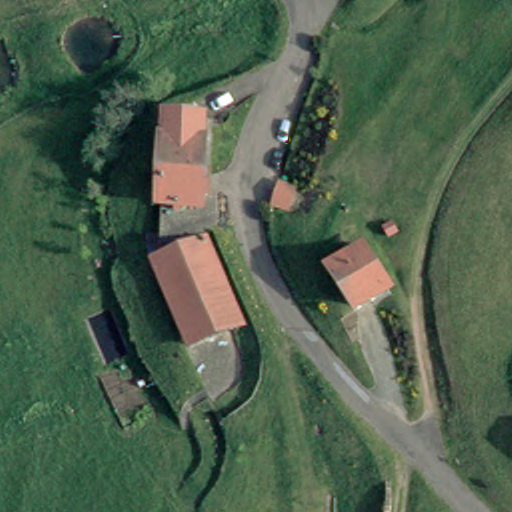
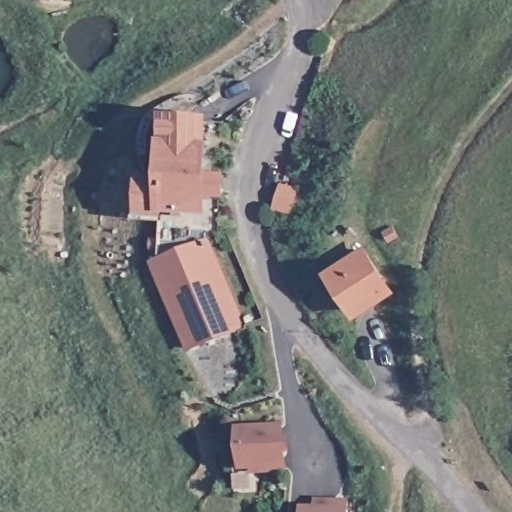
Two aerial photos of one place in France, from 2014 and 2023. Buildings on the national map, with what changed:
unchanged [(163,114),(202,115),(202,138),(202,158),(210,158),(209,194),(203,194),(203,208),(161,207),(163,137),(163,114)]
unchanged [(188,236),(202,235),(233,304),(242,324),(191,351),(160,255),(198,255),(188,236)]
unchanged [(334,274),(362,254),(380,272),(390,290),(360,310),(334,274)]
new [(285,424),(286,474),(250,476),(250,470),(240,470),(238,426),(285,424)]
new [(348,512),(302,512),(302,505),(315,505),(315,500),(348,500),(348,512)]

